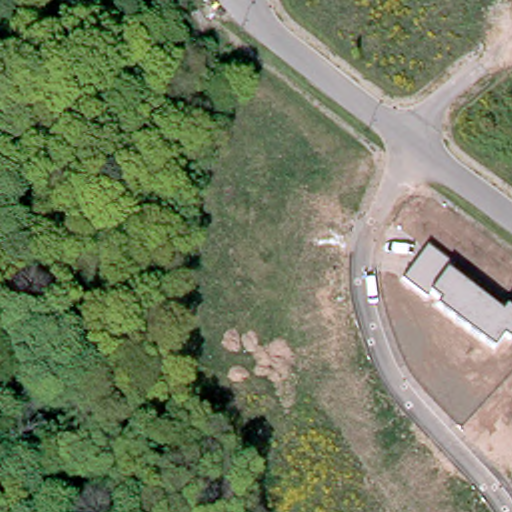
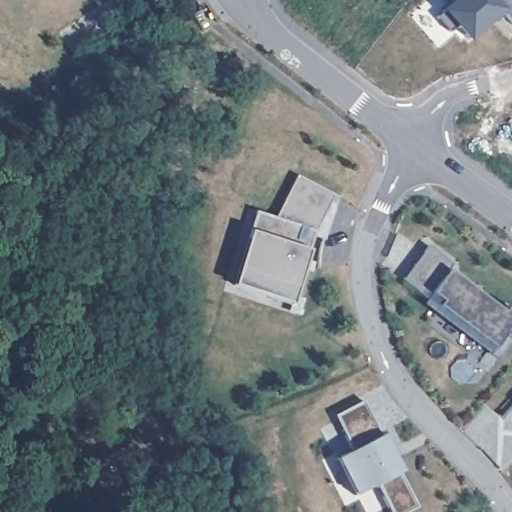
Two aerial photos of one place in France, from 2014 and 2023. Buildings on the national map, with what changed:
new [(469,39),(456,26),(449,32),(436,17),(455,0),(512,0),(512,24),(504,14),(494,23),(490,19),(469,39)]
new [(337,198),(324,240),(312,234),(307,250),(292,295),(302,299),(297,317),(285,314),(290,304),(230,287),(247,232),(252,212),(272,218),(295,175),(337,198)]
unchanged [(454,262),(449,269),(502,308),(506,303),(512,306),(512,340),(505,335),(494,351),(402,282),(430,244),(454,262)]
new [(383,436),(402,472),(417,508),(408,512),(390,512),(378,484),(352,494),(335,457),(348,451),(332,415),(362,400),(383,436)]

